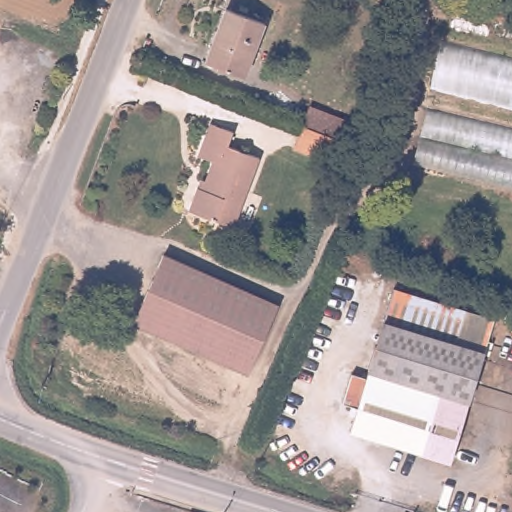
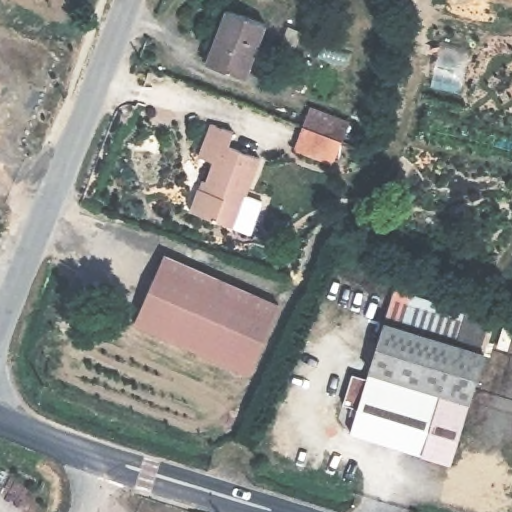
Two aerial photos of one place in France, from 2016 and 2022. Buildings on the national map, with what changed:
unchanged [(267,22),(245,74),(206,59),(229,5),(267,22)]
demolished [(440,35),(512,53),(512,101),(431,82),(440,35)]
demolished [(427,102),(512,124),(512,183),(416,160),(427,102)]
unchanged [(300,147),(308,124),(316,103),(355,117),(346,138),(338,161),(300,147)]
unchanged [(237,132),(232,146),(263,158),(236,227),(192,211),(200,188),(205,190),(215,161),(201,156),(214,122),(237,132)]
unchanged [(283,303),(254,372),(140,320),(170,252),(283,303)]
unchanged [(398,286),(497,317),(487,352),(386,322),(398,286)]
unchanged [(409,383),(373,372),(371,372),(386,322),(487,352),(472,403),(443,395),(409,383)]
unchanged [(425,453),(355,431),(373,372),(409,383),(443,395),(425,453)]
unchanged [(472,403),(453,462),(425,453),(443,395),(472,403)]

